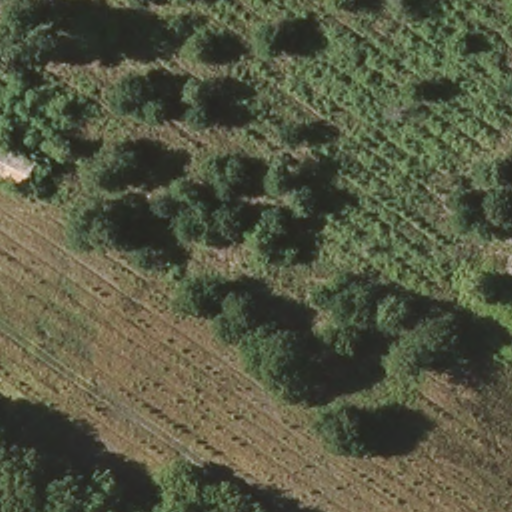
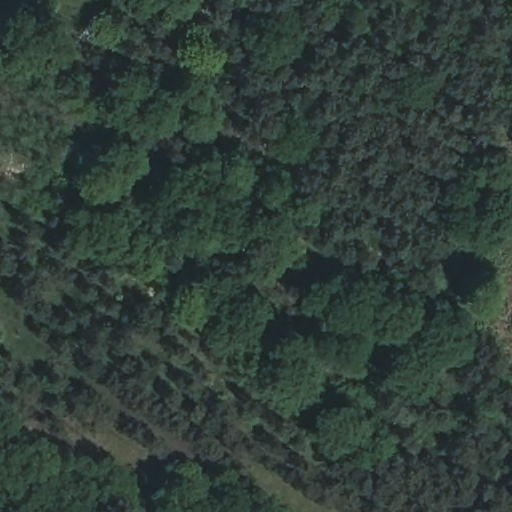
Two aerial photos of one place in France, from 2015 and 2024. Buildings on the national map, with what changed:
unchanged [(0,141),(39,160),(26,187),(0,175),(0,141)]

